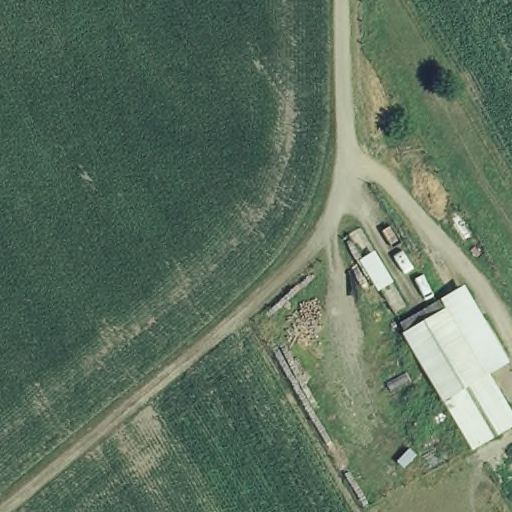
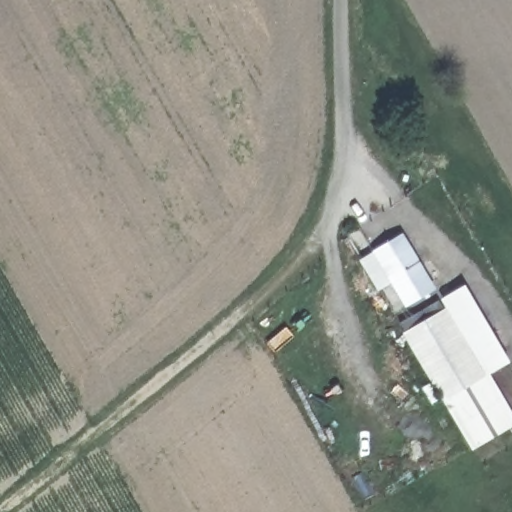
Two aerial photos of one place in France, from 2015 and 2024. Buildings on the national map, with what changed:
new [(378,291),(359,261),(373,252),(402,234),(436,290),(406,307),(391,282),(378,291)]
unchanged [(508,361),(487,373),(446,305),(439,295),(466,281),(508,361)]
unchanged [(487,373),(512,413),(512,425),(468,450),(399,331),(446,305),(487,373)]

